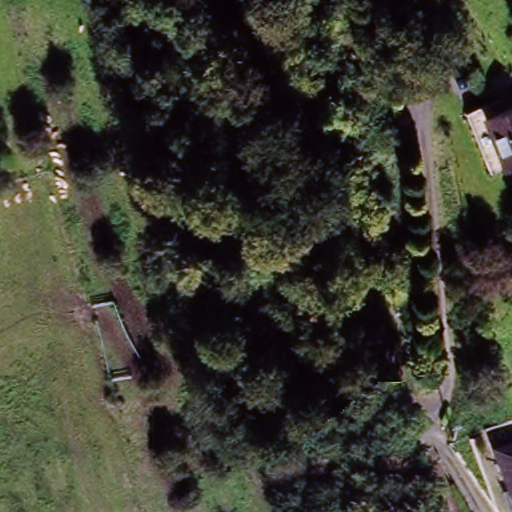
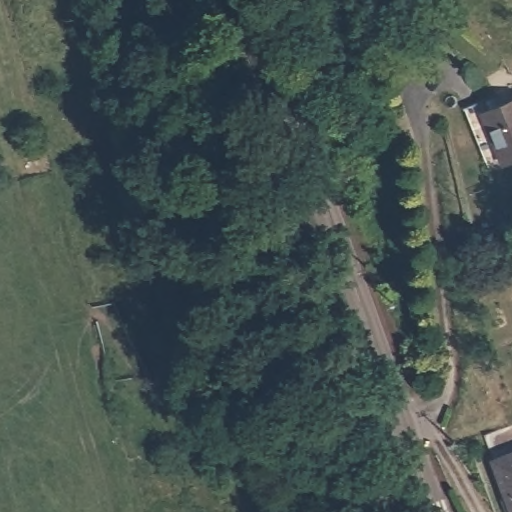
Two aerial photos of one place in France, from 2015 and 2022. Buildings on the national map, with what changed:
unchanged [(486,116),(512,106),(512,167),(507,168),(486,116)]
unchanged [(500,487),(512,484),(503,457),(512,455),(512,512),(508,512),(500,487)]

